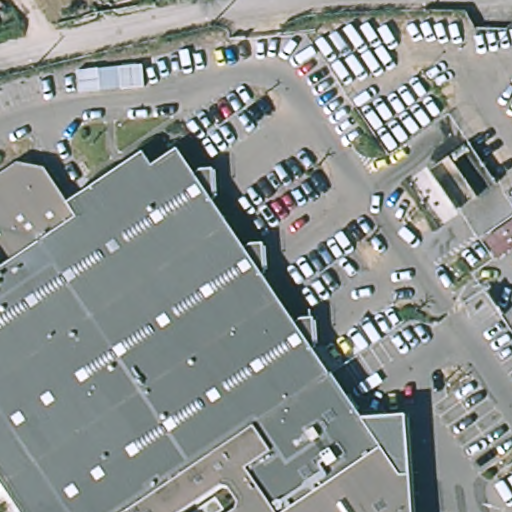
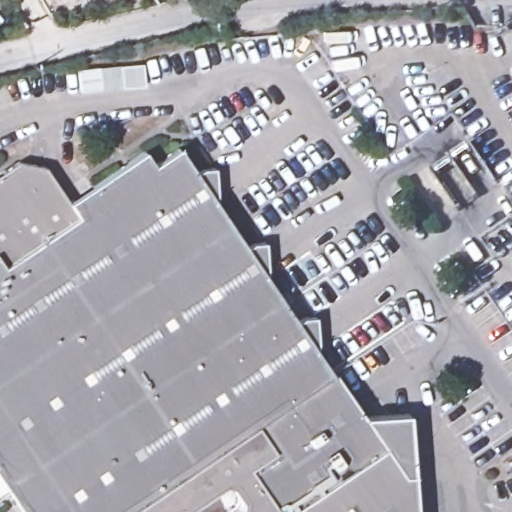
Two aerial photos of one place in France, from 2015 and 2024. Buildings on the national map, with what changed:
unchanged [(113,93),(110,70),(133,67),(136,90),(113,93)]
unchanged [(357,411),(379,396),(403,430),(408,467),(413,512),(19,512),(0,485),(0,168),(9,162),(35,167),(60,202),(134,149),(144,164),(169,147),(186,172),(193,168),(205,166),(208,197),(205,198),(238,245),(244,241),(256,240),(259,270),(256,272),(289,319),(296,314),(308,314),(311,344),(308,346),(325,370),(328,368),(357,411)]

